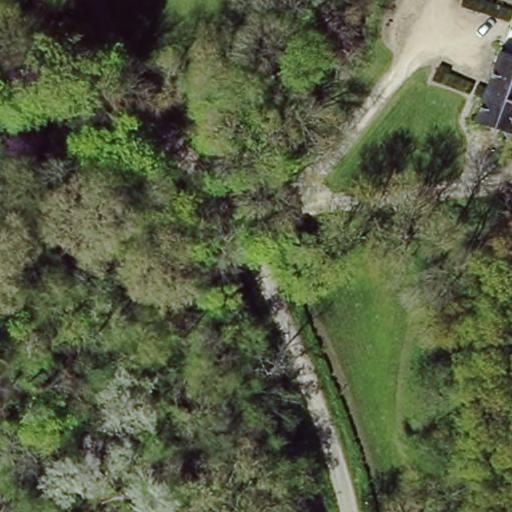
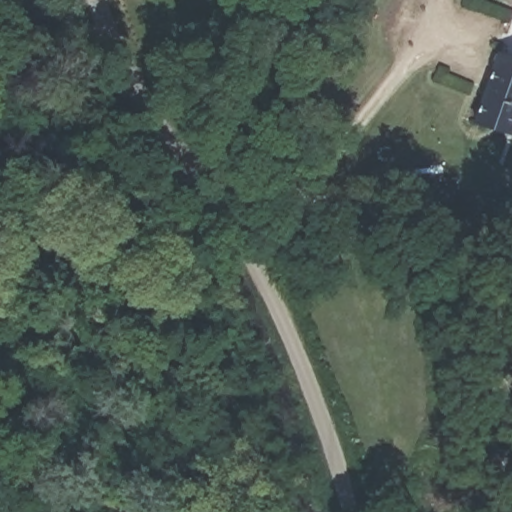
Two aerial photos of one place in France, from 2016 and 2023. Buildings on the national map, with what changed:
unchanged [(512,56),(512,134),(478,122),(497,50),(512,56)]

